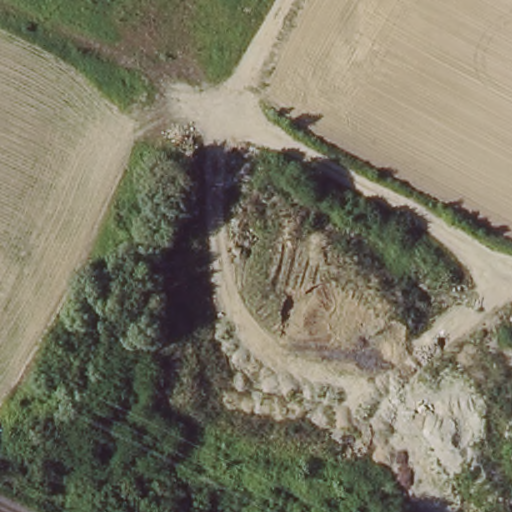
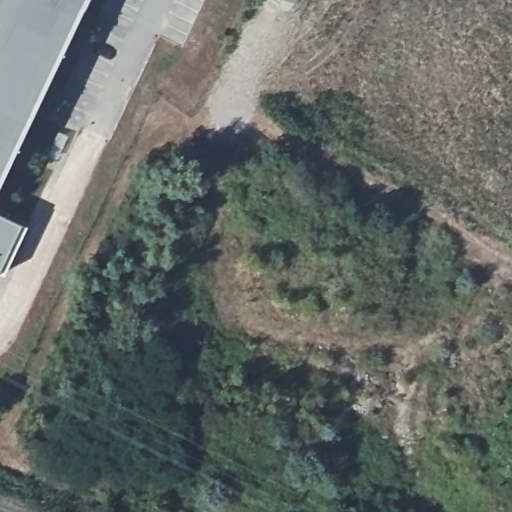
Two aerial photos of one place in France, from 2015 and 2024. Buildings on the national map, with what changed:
new [(0,165),(0,0),(79,0),(0,165)]
new [(18,224),(0,262),(0,215),(18,224)]

